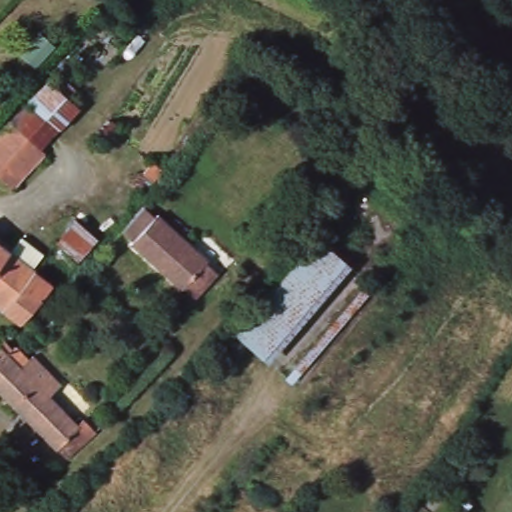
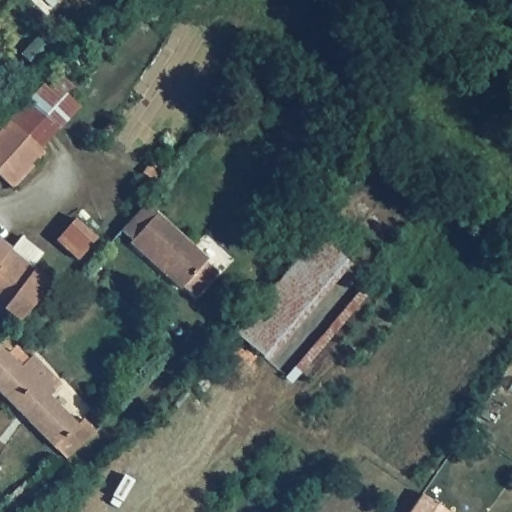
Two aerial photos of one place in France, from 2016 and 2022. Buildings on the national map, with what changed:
unchanged [(50,81),(78,103),(58,126),(31,103),(50,81)]
unchanged [(12,125),(31,103),(58,126),(39,149),(31,142),(12,125)]
unchanged [(12,125),(31,142),(0,176),(0,139),(12,125)]
unchanged [(47,156),(16,191),(0,178),(0,176),(31,142),(39,149),(47,156)]
unchanged [(161,220),(162,215),(215,260),(213,262),(226,273),(205,299),(192,288),(190,291),(136,246),(139,243),(127,234),(149,208),(161,220)]
unchanged [(15,247),(25,234),(47,253),(37,267),(50,278),(18,318),(0,303),(0,255),(5,248),(10,244),(15,247)]
unchanged [(10,244),(5,248),(0,255),(0,236),(10,244)]
unchanged [(320,238),(348,261),(268,360),(240,337),(320,238)]
unchanged [(0,391),(0,349),(1,347),(11,355),(18,348),(31,359),(36,354),(65,380),(54,393),(85,419),(90,415),(102,425),(97,430),(87,441),(74,455),(0,391)]
new [(409,512),(421,494),(448,512),(409,512)]
unchanged [(55,512),(50,512),(53,510),(55,512)]

